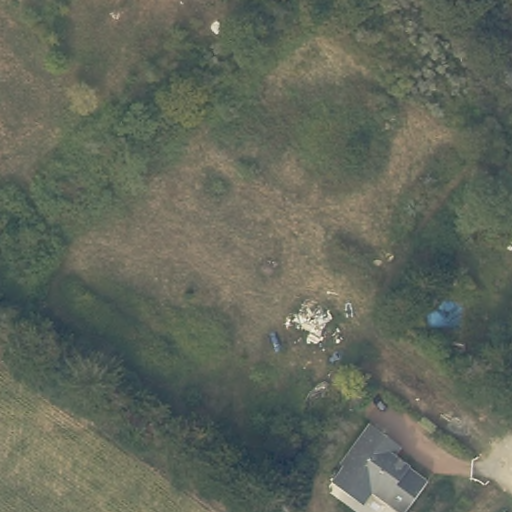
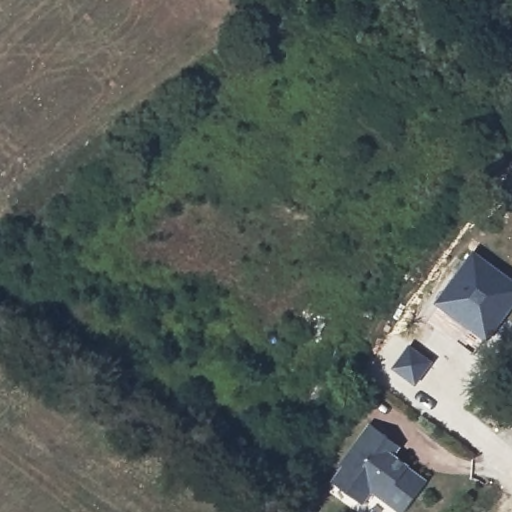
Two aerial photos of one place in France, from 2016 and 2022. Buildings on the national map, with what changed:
new [(512,309),(489,340),(437,301),(475,251),(512,278),(512,309)]
unchanged [(437,480),(413,512),(409,512),(382,492),(373,504),(342,481),(353,465),(350,462),(380,423),(397,436),(411,446),(405,454),(420,465),(418,466),(437,480)]

